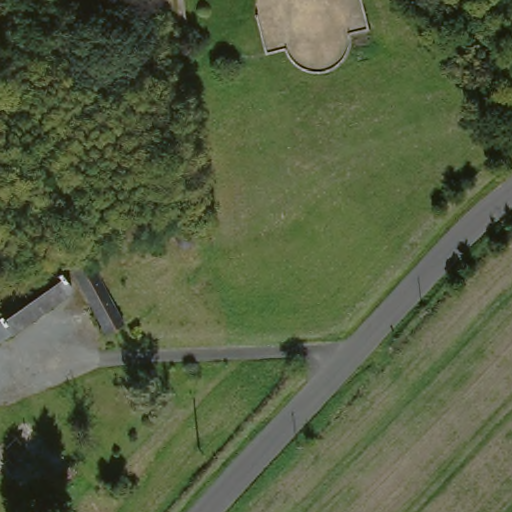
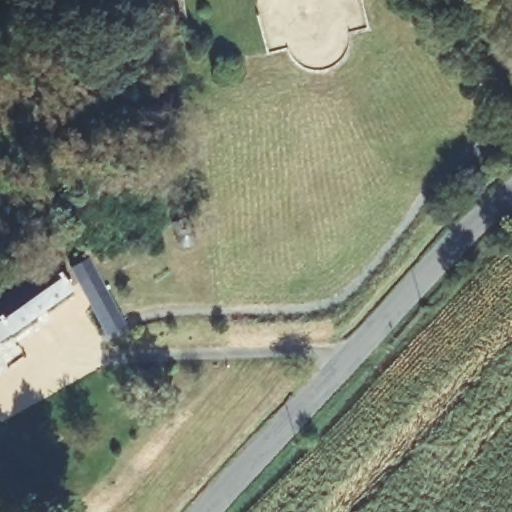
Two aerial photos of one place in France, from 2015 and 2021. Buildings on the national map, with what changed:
unchanged [(195,236),(180,244),(174,229),(180,225),(189,219),(195,236)]
unchanged [(128,329),(106,339),(66,272),(89,262),(93,270),(128,329)]
unchanged [(55,265),(76,295),(0,346),(0,302),(55,265)]

